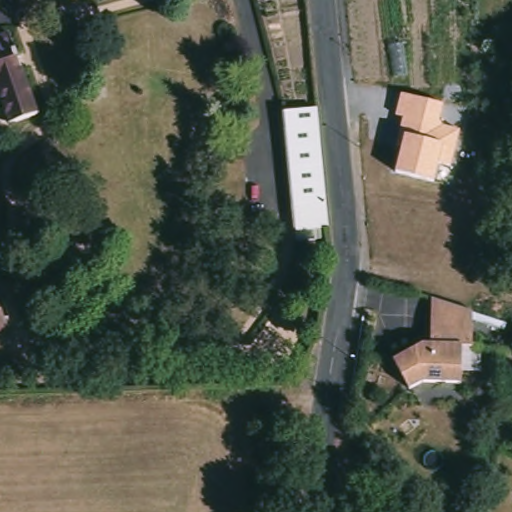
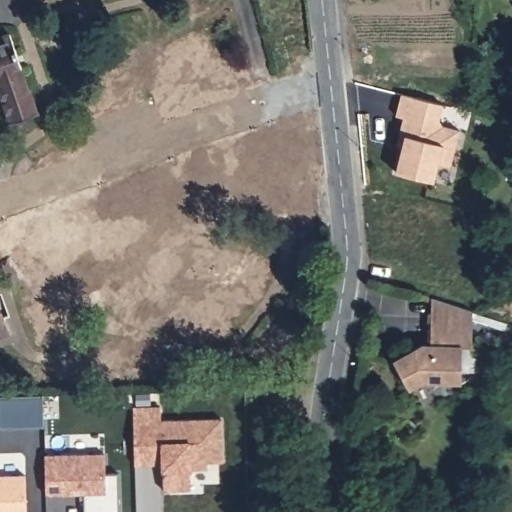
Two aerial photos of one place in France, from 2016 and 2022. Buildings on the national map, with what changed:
unchanged [(34,108),(8,118),(0,96),(0,33),(5,31),(34,108)]
unchanged [(443,103),(440,119),(443,127),(459,129),(451,167),(440,164),(435,182),(395,172),(404,136),(397,134),(401,117),(394,116),(400,94),(443,103)]
unchanged [(297,234),(285,131),(283,113),(318,109),(320,129),(329,232),(297,234)]
unchanged [(458,349),(459,385),(420,386),(408,394),(390,366),(418,348),(425,348),(425,320),(425,300),(467,312),(467,331),(468,348),(458,349)]
unchanged [(0,342),(0,303),(11,337),(0,342)]
new [(0,397),(41,395),(43,426),(0,426),(0,397)]
new [(159,406),(160,421),(220,419),(222,461),(206,461),(206,468),(190,469),(190,490),(163,490),(161,472),(160,465),(135,464),(132,406),(159,406)]
new [(83,493),(46,493),(45,455),(102,453),(103,474),(116,474),(118,512),(84,512),(83,493)]
new [(29,512),(0,512),(0,476),(23,475),(34,497),(29,512)]

